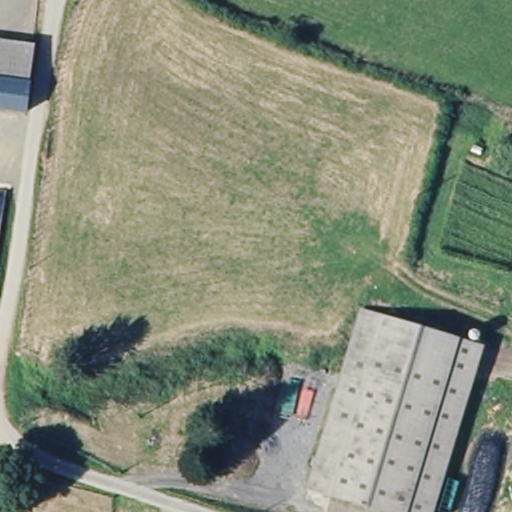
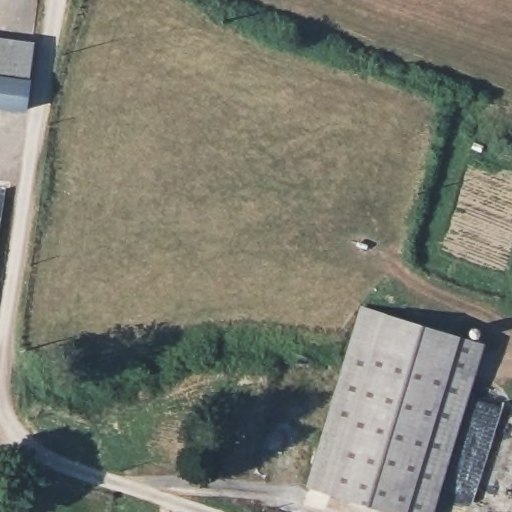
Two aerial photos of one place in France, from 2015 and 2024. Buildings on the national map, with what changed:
unchanged [(32,75),(0,71),(0,36),(36,40),(32,75)]
unchanged [(29,103),(0,98),(0,71),(32,75),(29,103)]
unchanged [(366,307),(393,316),(385,346),(354,344),(366,307)]
unchanged [(393,316),(462,338),(454,365),(385,346),(393,316)]
unchanged [(385,346),(454,365),(452,372),(477,380),(469,401),(382,373),(346,371),(354,344),(385,346)]
unchanged [(469,401),(431,512),(390,512),(309,487),(346,371),(382,373),(469,401)]

